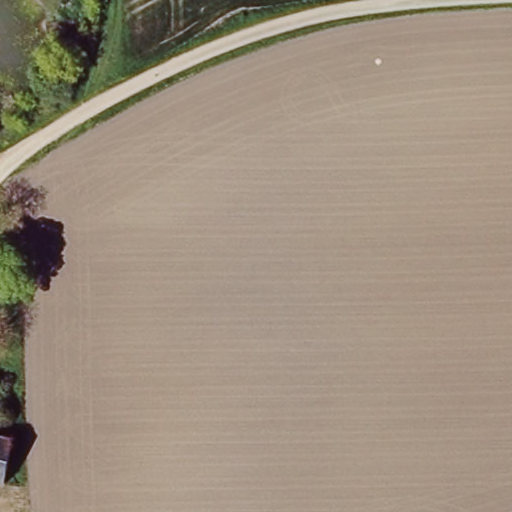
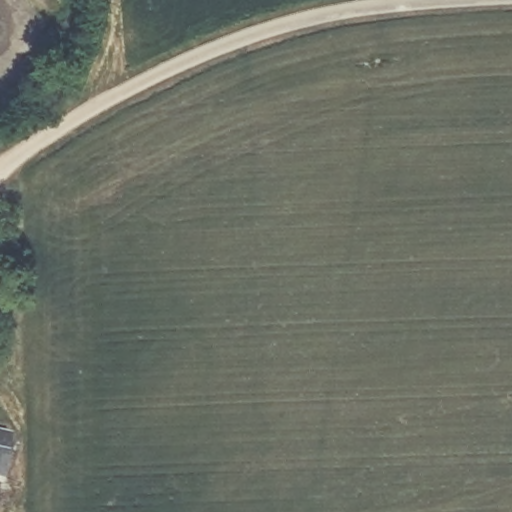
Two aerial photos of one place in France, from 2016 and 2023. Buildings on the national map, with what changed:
unchanged [(0,443),(0,429),(2,429),(0,443)]

